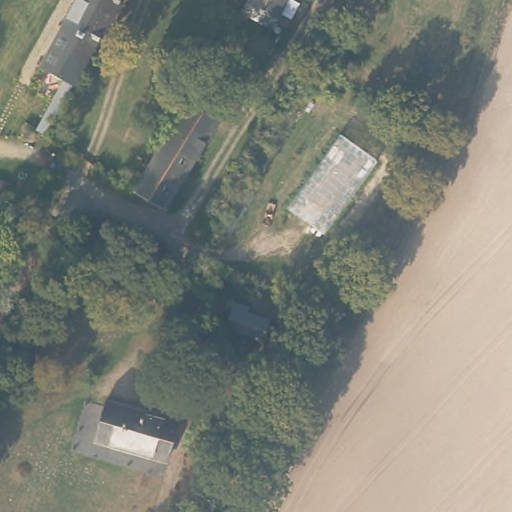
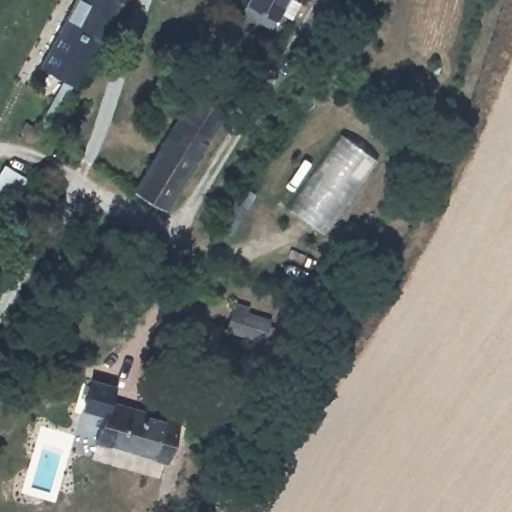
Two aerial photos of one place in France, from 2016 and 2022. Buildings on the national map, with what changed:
unchanged [(79,82),(69,77),(45,64),(80,0),(125,0),(79,82)]
unchanged [(267,27),(236,10),(242,0),(284,0),(267,27)]
unchanged [(230,100),(166,210),(132,190),(199,81),(230,100)]
unchanged [(262,326),(270,329),(266,343),(256,340),(255,345),(222,336),(229,313),(231,303),(245,307),(243,315),(263,321),(262,326)]
unchanged [(176,423),(164,465),(91,443),(105,402),(176,423)]

